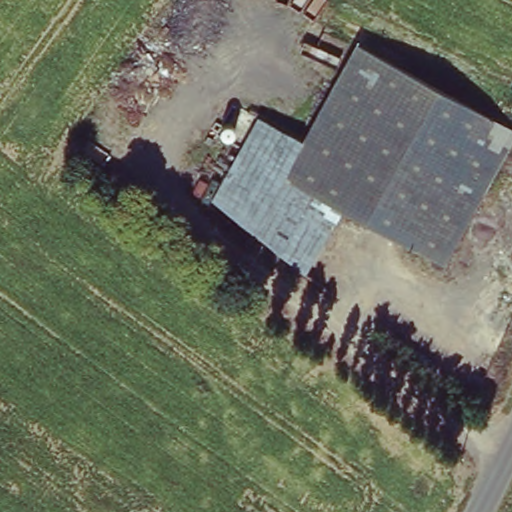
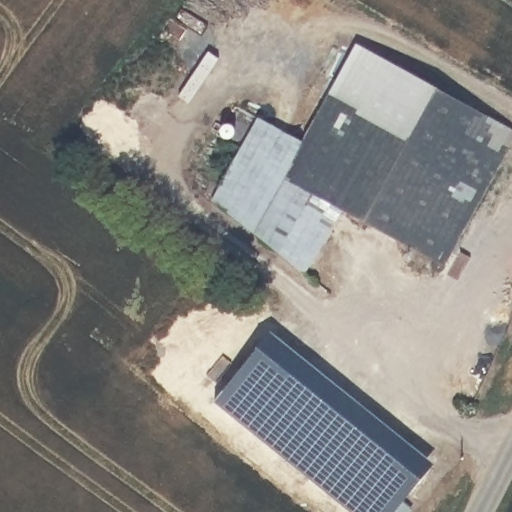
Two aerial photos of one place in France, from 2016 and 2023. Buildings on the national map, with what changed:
unchanged [(319,249),(303,277),(249,241),(205,212),(258,118),(303,143),(357,45),(512,130),(512,140),(444,265),(344,210),(342,209),(319,249)]
new [(443,459),(402,512),(345,512),(197,392),(259,315),(443,459)]

